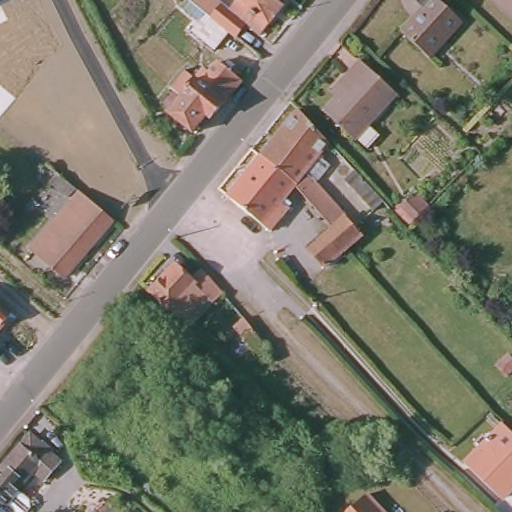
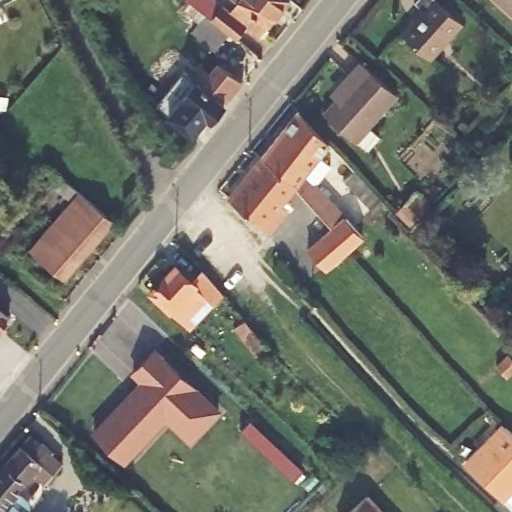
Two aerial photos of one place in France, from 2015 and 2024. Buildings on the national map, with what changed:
unchanged [(8,0),(0,4),(0,0),(8,0)]
unchanged [(185,4),(189,0),(207,0),(230,18),(231,15),(226,11),(232,5),(230,1),(230,0),(283,0),(290,5),(260,42),(245,31),(235,44),(220,31),(185,4)]
unchanged [(432,60),(405,35),(427,12),(417,5),(421,0),(438,0),(465,25),(432,60)]
unchanged [(512,0),(512,11),(500,0),(512,0)]
unchanged [(394,92),(365,125),(376,135),(364,147),(355,139),(350,139),(321,111),(342,87),(338,82),(358,59),(394,92)]
unchanged [(205,119),(192,134),(168,114),(181,98),(168,87),(182,70),(196,82),(205,72),(210,75),(220,64),(243,82),(240,87),(210,122),(205,119)]
unchanged [(328,228),(290,186),(289,185),(257,158),(295,112),(312,130),(325,145),(314,156),(325,166),(308,185),(338,219),(328,229),(328,228)]
unchanged [(289,185),(290,186),(275,205),(281,210),(264,231),(257,225),(225,197),(257,158),(289,185)]
unchanged [(375,213),(345,182),(355,172),(385,204),(375,213)]
unchanged [(63,175),(118,222),(68,280),(35,251),(77,203),(56,185),(63,175)]
unchanged [(338,219),(357,239),(340,252),(320,270),(303,249),(328,229),(338,219)]
unchanged [(184,323),(146,287),(171,263),(185,276),(197,265),(217,288),(207,300),(188,319),(184,323)]
unchanged [(0,331),(0,312),(9,320),(0,331)]
unchanged [(267,347),(257,355),(235,326),(245,318),(267,347)]
new [(144,390),(130,375),(155,350),(215,410),(188,442),(157,409),(129,433),(141,446),(125,460),(97,432),(144,390)]
unchanged [(461,460),(500,422),(512,435),(512,476),(494,493),(461,460)]
unchanged [(30,431),(40,439),(42,436),(52,446),(50,450),(59,458),(45,475),(37,468),(27,480),(25,479),(19,486),(30,496),(30,503),(23,512),(5,512),(0,508),(0,509),(0,468),(30,431)]
unchanged [(380,512),(341,512),(361,492),(380,512)]

